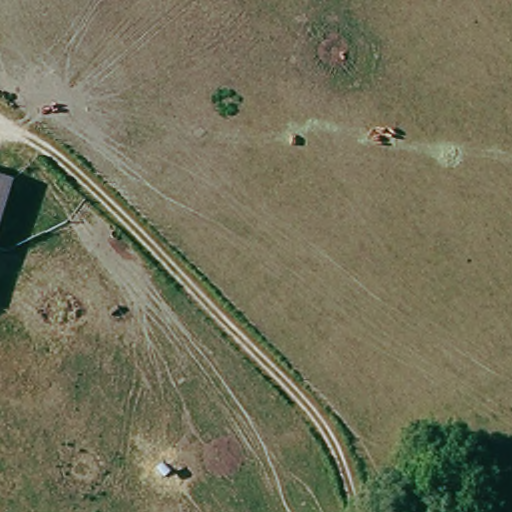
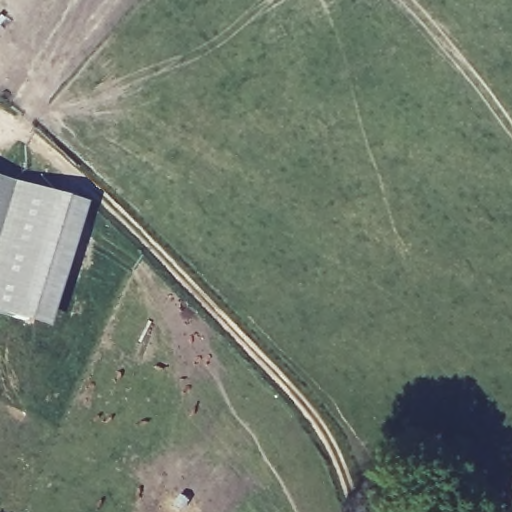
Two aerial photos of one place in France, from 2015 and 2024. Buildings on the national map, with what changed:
unchanged [(0,216),(0,181),(9,183),(0,216)]
new [(0,216),(9,183),(84,204),(46,328),(0,314),(0,216)]

